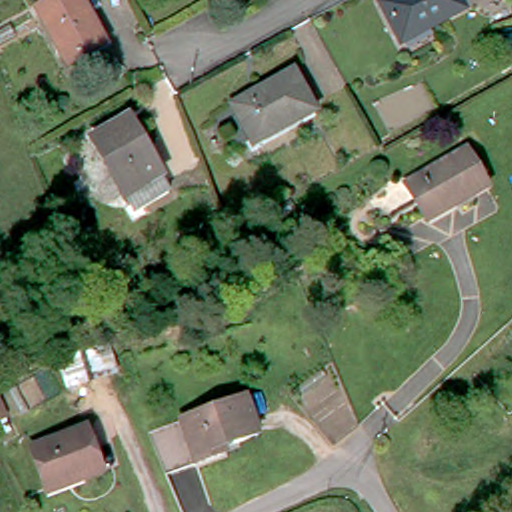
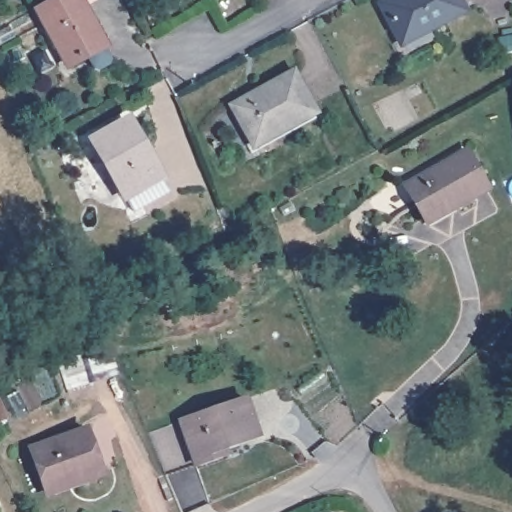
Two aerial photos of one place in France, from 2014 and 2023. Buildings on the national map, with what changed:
unchanged [(99,40),(65,58),(35,5),(44,0),(78,0),(99,40)]
unchanged [(391,0),(458,0),(463,9),(403,40),(384,4),(391,0)]
unchanged [(289,70),(309,106),(251,138),(230,102),(289,70)]
unchanged [(164,180),(129,200),(90,130),(124,110),(164,180)]
unchanged [(458,205),(454,199),(424,216),(406,184),(466,149),(488,187),(458,205)]
unchanged [(264,434),(189,457),(176,416),(249,390),(264,434)]
unchanged [(43,483),(30,447),(86,427),(102,472),(72,483),(46,492),(43,483)]

